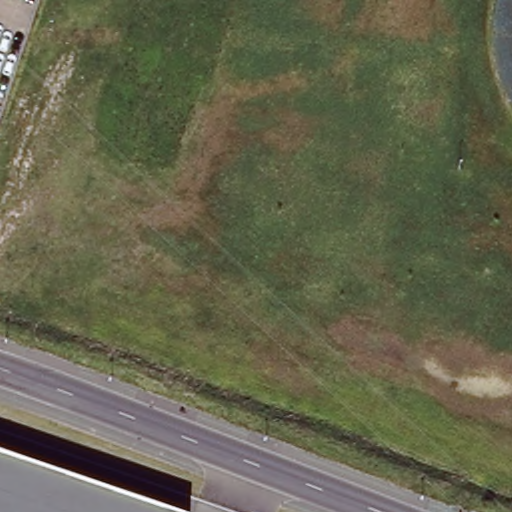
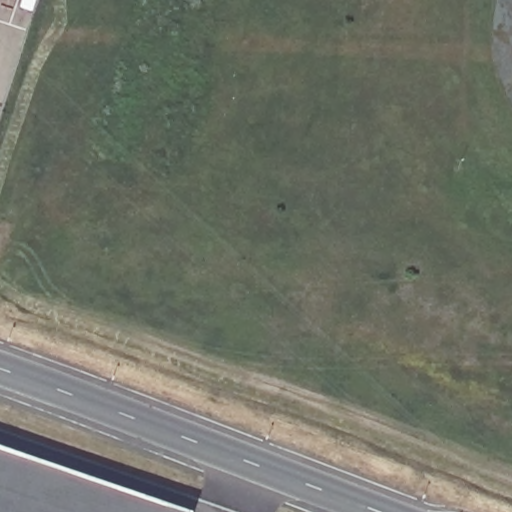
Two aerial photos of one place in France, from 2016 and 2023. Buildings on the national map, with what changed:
unchanged [(0,459),(160,512),(0,512),(0,459)]

